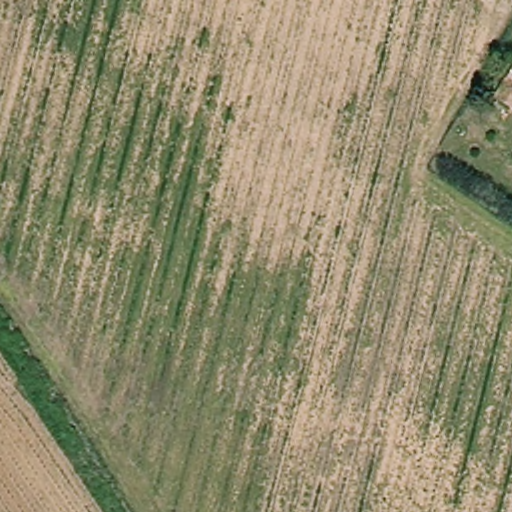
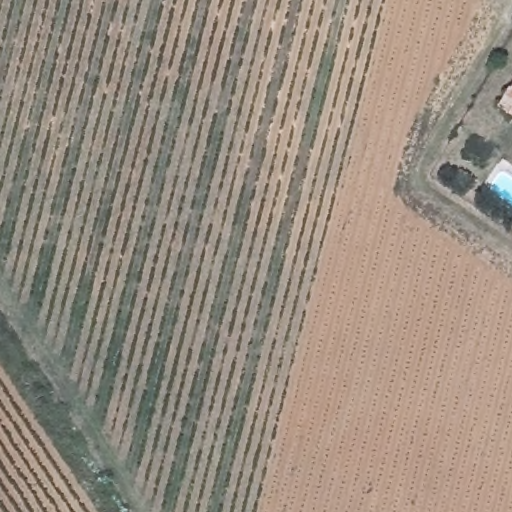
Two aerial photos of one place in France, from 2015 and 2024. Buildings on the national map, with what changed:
unchanged [(509,96),(512,91),(512,98),(509,96)]
unchanged [(507,139),(512,131),(512,143),(507,139)]

